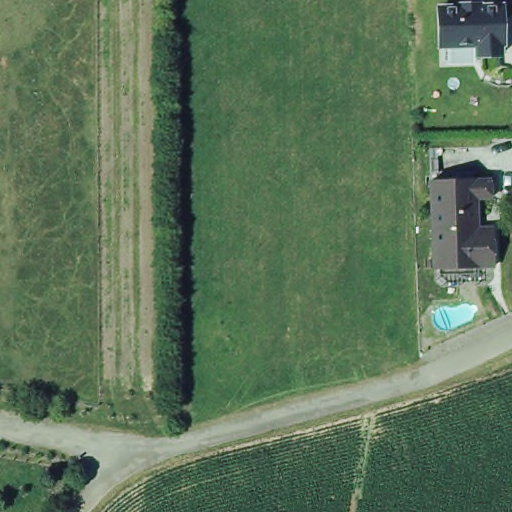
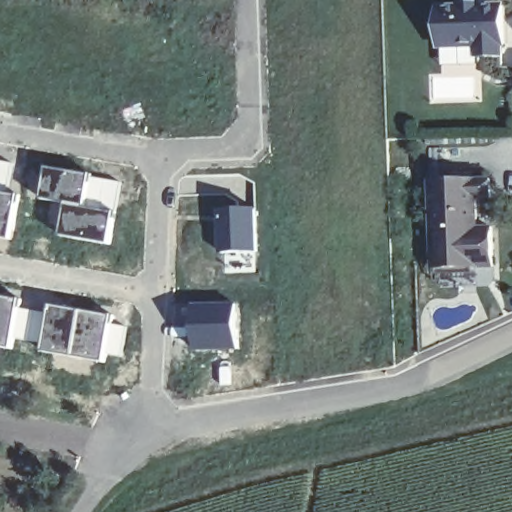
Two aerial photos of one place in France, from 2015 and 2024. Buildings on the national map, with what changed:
unchanged [(441,8),(463,7),(463,4),(481,4),(481,6),(504,6),(506,42),(502,42),(502,54),(480,55),(479,44),(443,45),(441,8)]
new [(16,163),(11,192),(20,194),(13,243),(0,240),(0,159),(16,163)]
new [(47,165),(92,174),(86,208),(65,205),(40,200),(47,165)]
new [(65,205),(86,208),(92,174),(124,181),(112,247),(60,238),(65,205)]
unchanged [(487,183),(487,201),(473,201),(474,231),(488,231),(489,269),(428,270),(427,185),(487,183)]
new [(254,208),(256,252),(222,253),(221,209),(254,208)]
new [(17,341),(15,352),(0,349),(0,294),(24,298),(22,307),(47,311),(49,304),(115,314),(114,323),(129,326),(123,359),(108,356),(107,365),(42,354),(44,346),(17,341)]
new [(237,302),(238,350),(196,353),(193,304),(237,302)]

